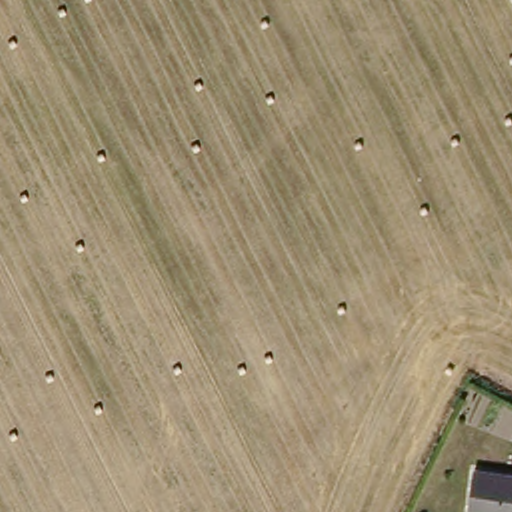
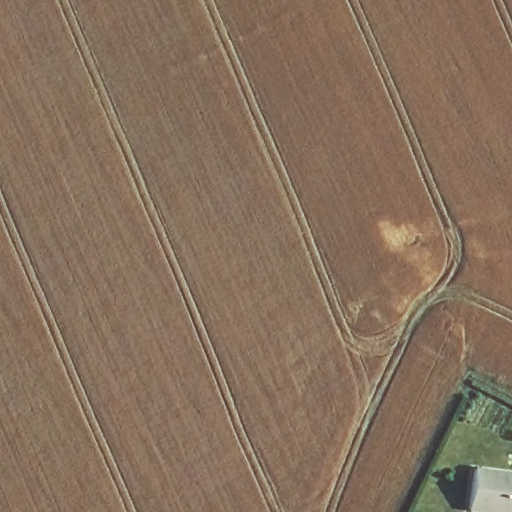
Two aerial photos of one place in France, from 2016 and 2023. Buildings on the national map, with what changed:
unchanged [(512,476),(512,512),(480,512),(466,510),(472,469),(512,476)]

